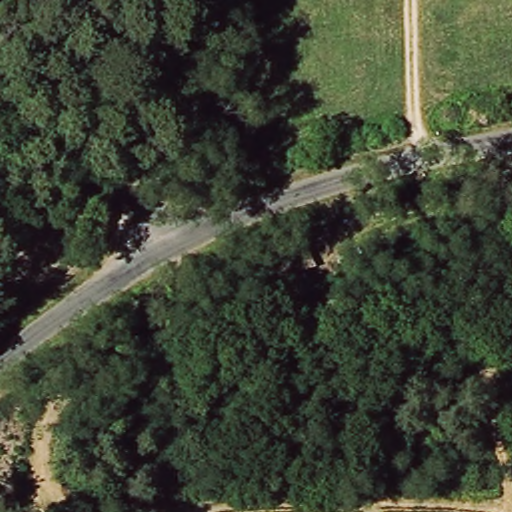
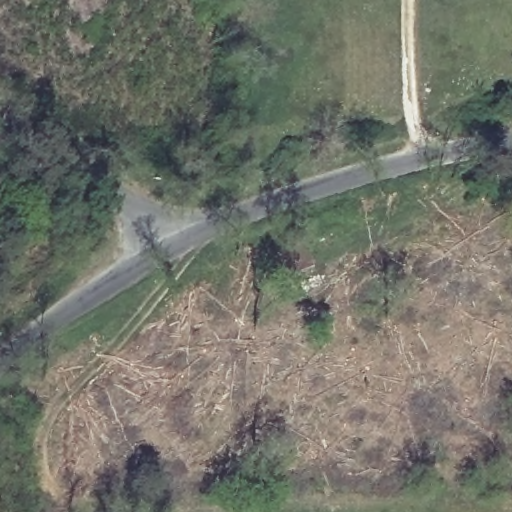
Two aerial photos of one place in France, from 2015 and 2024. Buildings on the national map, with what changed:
unchanged [(460,111),(480,109),(485,129),(463,134),(460,111)]

